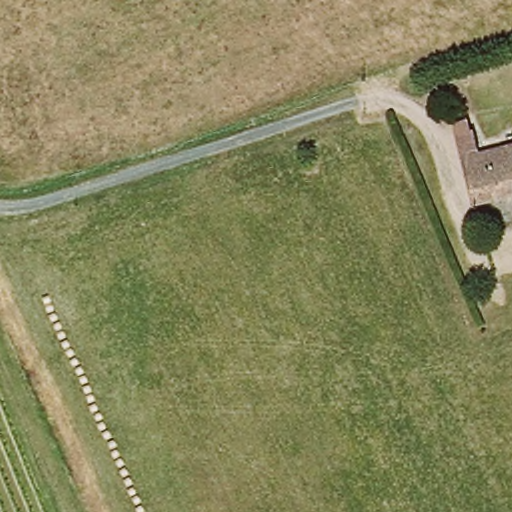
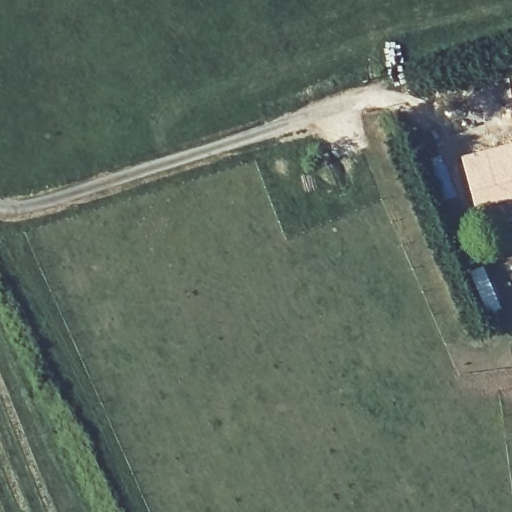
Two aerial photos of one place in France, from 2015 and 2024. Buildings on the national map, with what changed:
unchanged [(481,205),(459,124),(474,121),(483,156),(512,148),(512,196),(481,205)]
unchanged [(120,207),(116,192),(131,187),(136,202),(120,207)]

